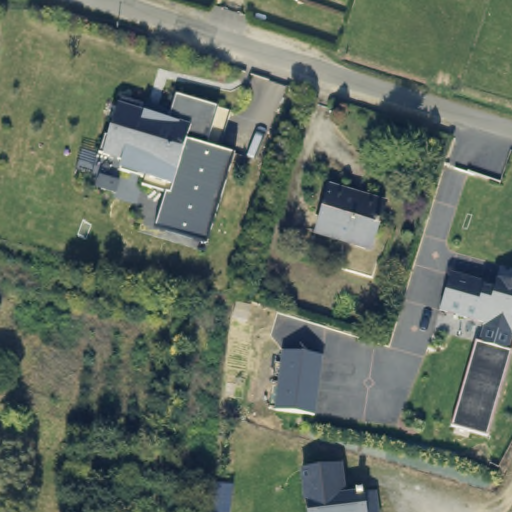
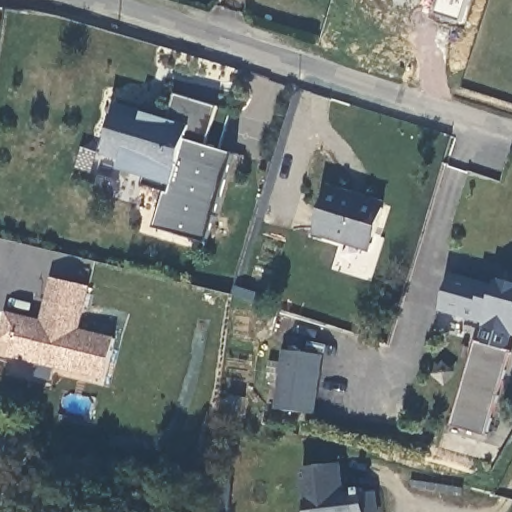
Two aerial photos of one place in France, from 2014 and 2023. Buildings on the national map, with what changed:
unchanged [(208,238),(155,223),(166,187),(143,180),(145,172),(121,165),(124,155),(99,148),(105,129),(109,130),(121,93),(142,99),(140,106),(168,114),(175,88),(231,104),(219,143),(235,147),(208,238)]
unchanged [(119,177),(116,188),(97,182),(101,171),(119,177)]
unchanged [(317,233),(330,188),(352,194),(351,199),(383,209),(370,249),(317,233)]
unchanged [(498,282),(499,279),(512,283),(512,335),(510,334),(506,349),(510,351),(487,437),(450,427),(473,340),(478,342),(483,323),(438,310),(448,274),(492,285),(493,280),(498,282)]
new [(10,359),(12,344),(0,343),(0,338),(6,312),(41,319),(51,279),(90,288),(80,329),(115,337),(103,381),(10,359)]
unchanged [(314,412),(275,407),(282,348),(321,352),(314,412)]
unchanged [(299,463),(337,458),(341,489),(353,488),(353,483),(360,482),(361,487),(372,485),(376,512),(306,512),(299,463)]
new [(213,484),(229,486),(227,512),(210,512),(213,484)]

